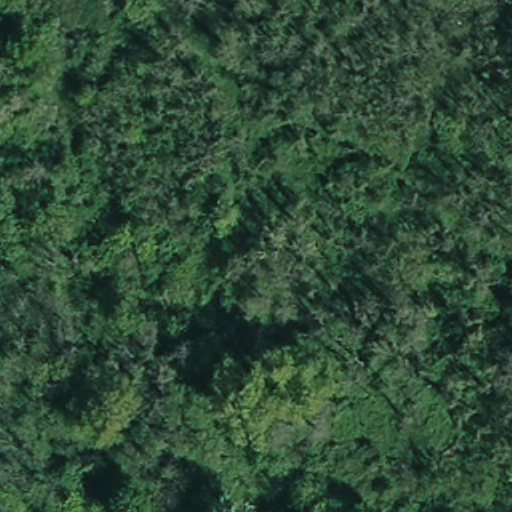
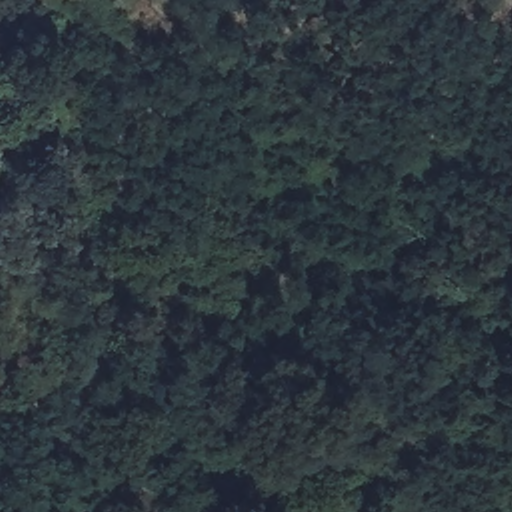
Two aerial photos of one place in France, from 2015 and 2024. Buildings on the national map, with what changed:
[]

